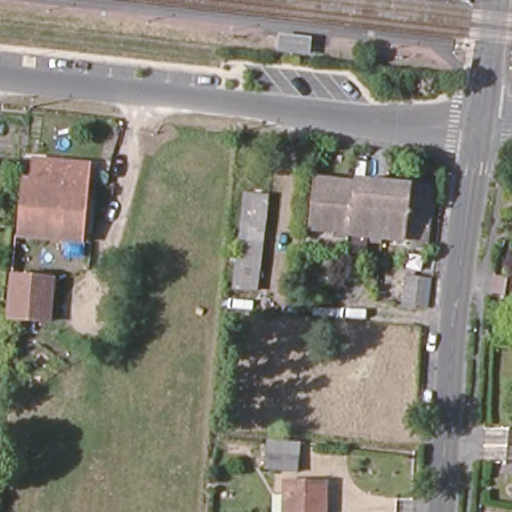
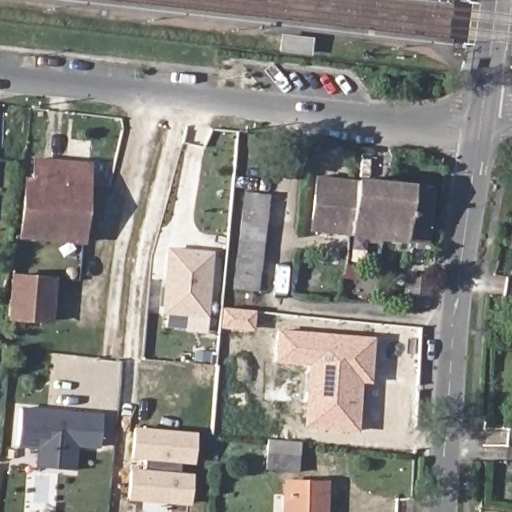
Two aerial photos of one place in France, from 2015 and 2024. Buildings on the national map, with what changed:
unchanged [(282,40),(308,43),(307,57),(280,54),(282,40)]
unchanged [(32,178),(34,158),(91,164),(82,242),(17,234),(24,178),(32,178)]
unchanged [(308,179),(422,193),(417,245),(302,232),(308,179)]
unchanged [(261,292),(234,289),(247,191),(273,194),(261,292)]
new [(214,252),(211,316),(165,311),(168,248),(214,252)]
unchanged [(60,280),(55,321),(11,316),(15,275),(60,280)]
unchanged [(412,276),(428,278),(426,308),(409,307),(412,276)]
new [(361,383),(357,432),(301,429),(306,366),(272,364),(276,329),(373,337),(370,383),(361,383)]
new [(103,416),(100,448),(77,445),(76,469),(36,466),(39,447),(16,444),(21,407),(103,416)]
new [(200,434),(197,463),(135,459),(137,429),(200,434)]
unchanged [(270,435),(298,438),(297,467),(268,465),(270,435)]
new [(196,474),(193,506),(131,503),(134,469),(196,474)]
unchanged [(327,481),(325,512),(289,512),(291,479),(327,481)]

